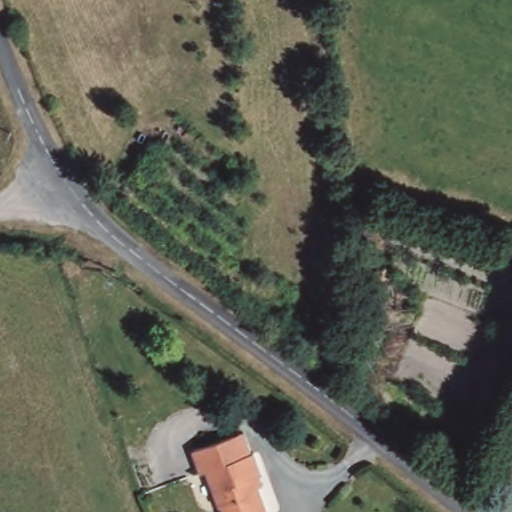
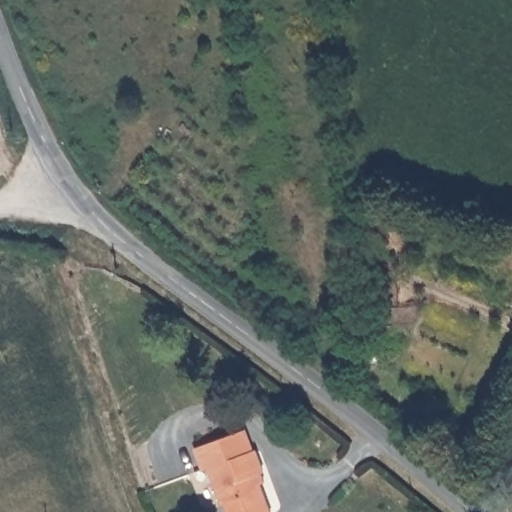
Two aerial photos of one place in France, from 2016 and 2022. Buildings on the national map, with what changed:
unchanged [(256,472),(254,473),(257,481),(252,483),(261,512),(221,512),(219,506),(215,508),(203,471),(198,472),(190,447),(228,435),(238,431),(242,440),(246,451),(249,450),(256,472)]

